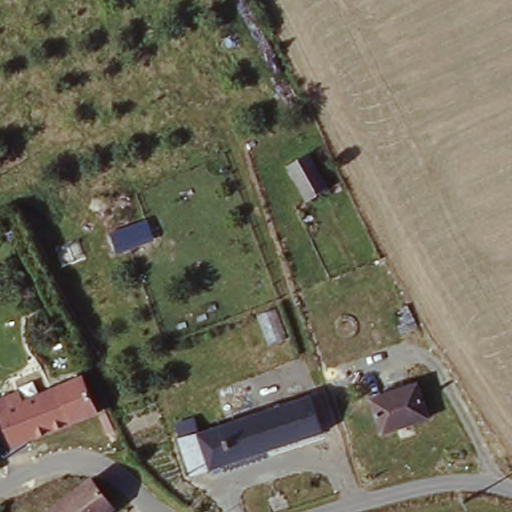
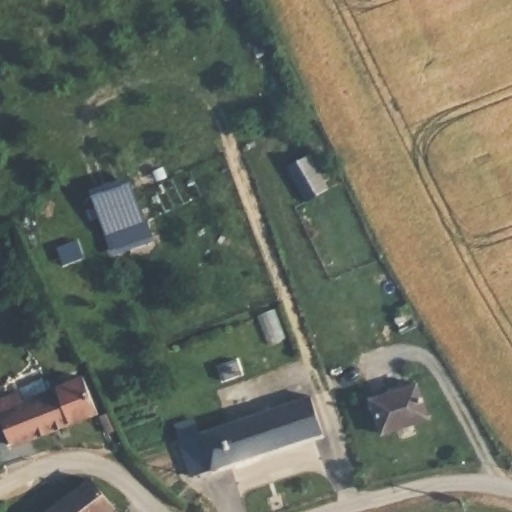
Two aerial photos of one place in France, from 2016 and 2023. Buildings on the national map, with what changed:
unchanged [(285,169),(305,159),(321,189),(302,200),(285,169)]
new [(152,240),(117,253),(111,234),(106,236),(89,191),(128,178),(152,240)]
unchanged [(406,313),(414,330),(400,335),(394,324),(401,320),(399,314),(402,313),(406,313)]
unchanged [(0,411),(0,408),(82,376),(95,411),(13,444),(12,444),(0,411)]
unchanged [(413,389),(424,423),(380,440),(367,403),(413,389)]
unchanged [(307,399),(320,436),(191,479),(179,443),(307,399)]
unchanged [(90,481),(111,512),(46,512),(90,481)]

